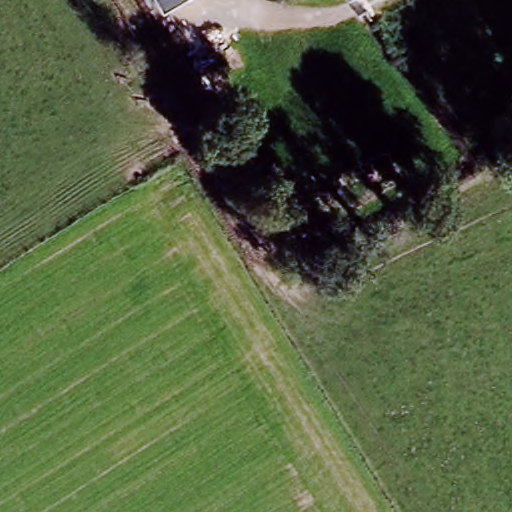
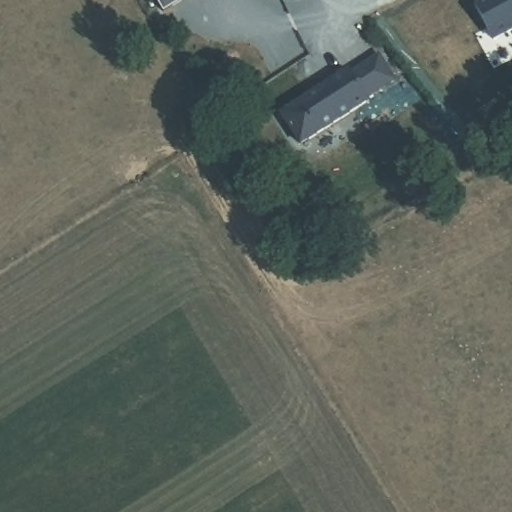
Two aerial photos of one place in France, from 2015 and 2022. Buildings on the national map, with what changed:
unchanged [(150,0),(181,0),(156,12),(150,0)]
new [(512,0),(512,33),(495,41),(478,3),(486,0),(512,0)]
new [(348,72),(350,75),(377,56),(394,79),(366,98),(368,101),(303,147),(282,118),(348,72)]

